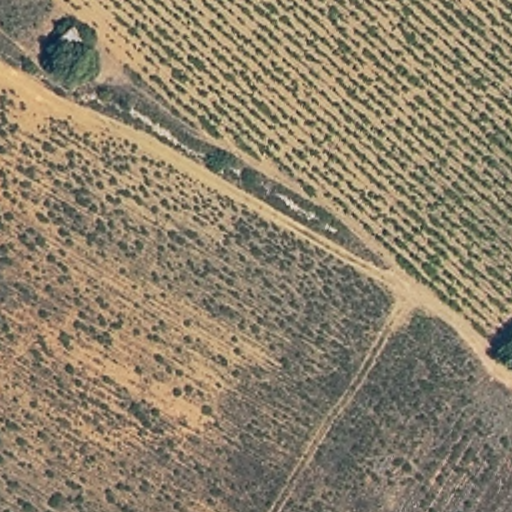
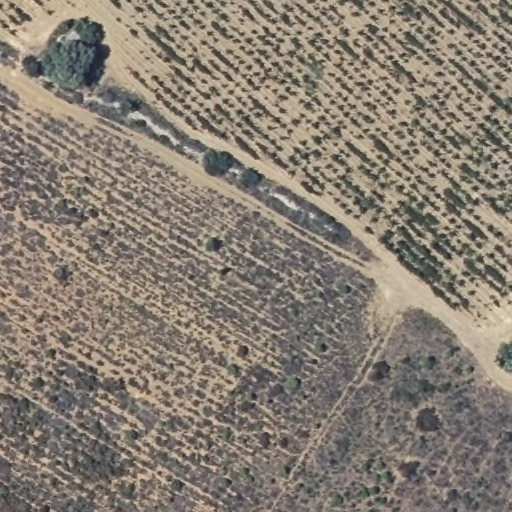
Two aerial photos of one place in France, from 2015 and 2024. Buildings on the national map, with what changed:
unchanged [(95,48),(77,58),(60,37),(80,26),(95,48)]

